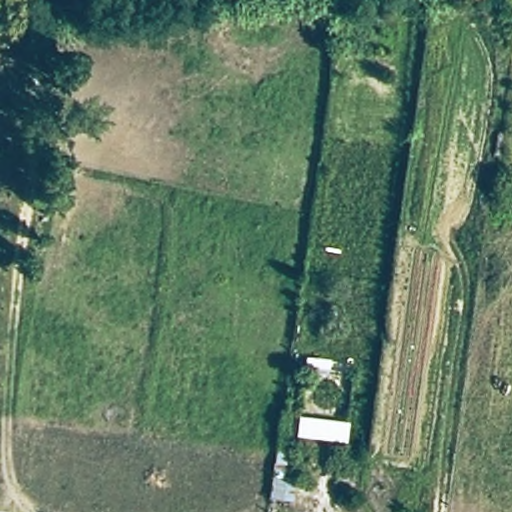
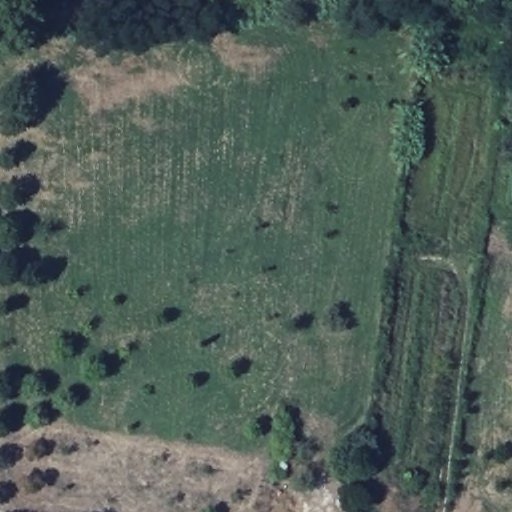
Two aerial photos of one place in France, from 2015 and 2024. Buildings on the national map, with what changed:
unchanged [(272,472),(290,473),(287,505),(269,502),(272,472)]

